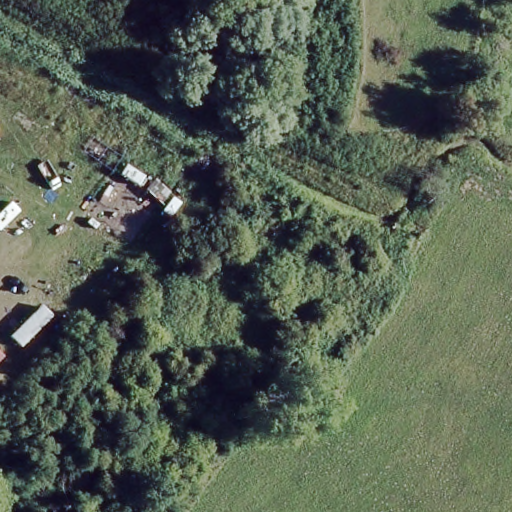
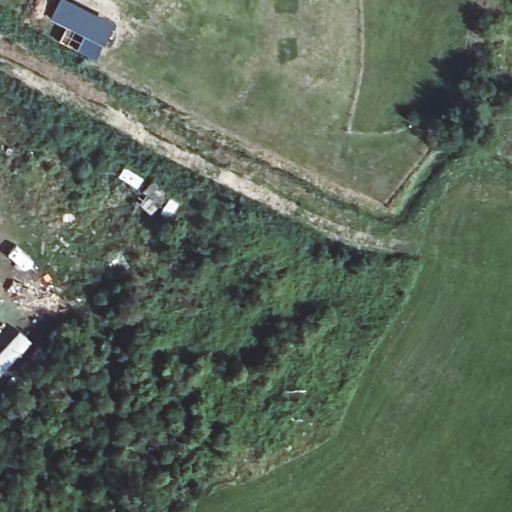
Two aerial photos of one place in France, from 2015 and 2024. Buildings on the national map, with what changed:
new [(105,42),(51,18),(60,0),(70,0),(115,20),(105,42)]

